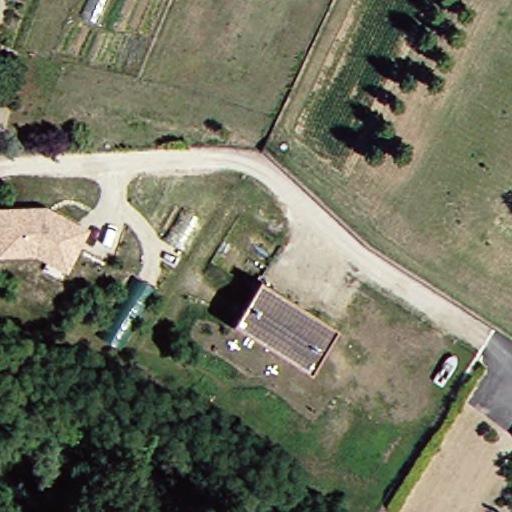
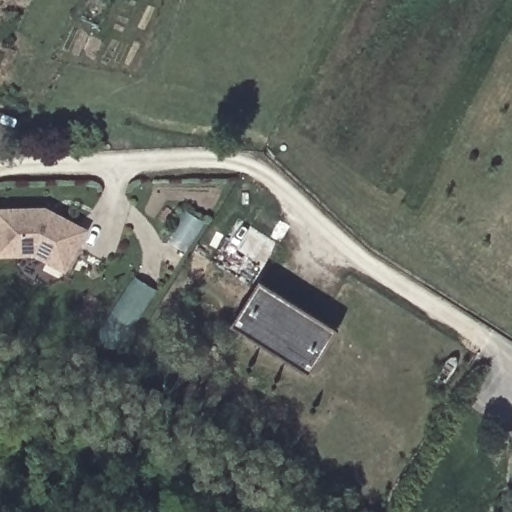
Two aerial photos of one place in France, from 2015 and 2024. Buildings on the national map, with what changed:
unchanged [(46,207),(89,229),(65,272),(34,256),(0,257),(0,207),(46,207)]
unchanged [(235,320),(263,277),(340,327),(311,371),(235,320)]

